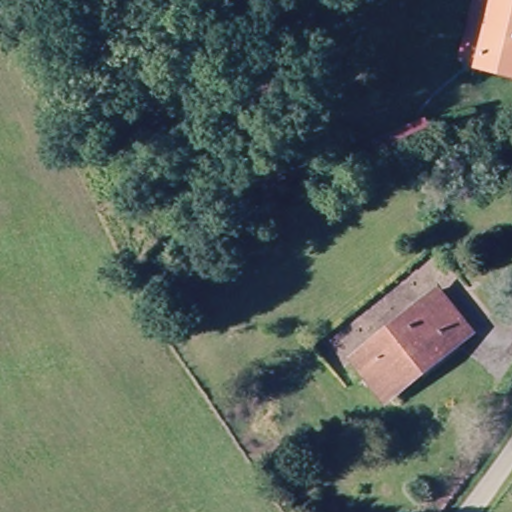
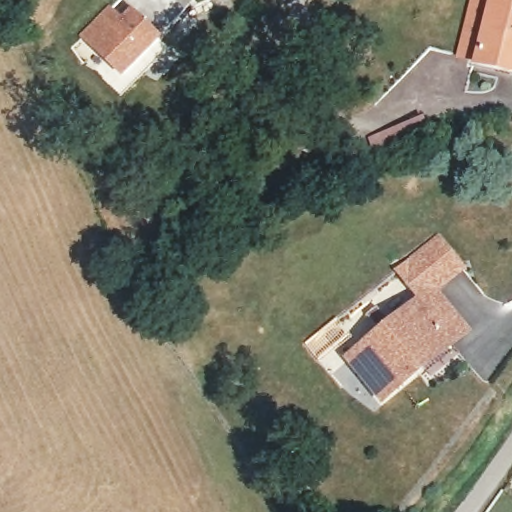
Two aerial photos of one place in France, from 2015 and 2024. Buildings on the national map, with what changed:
unchanged [(506,0),(490,56),(473,51),(486,0),(506,0)]
unchanged [(506,0),(512,0),(512,62),(490,56),(506,0)]
new [(108,5),(122,16),(131,8),(162,37),(123,78),(79,36),(108,5)]
demolished [(152,43),(121,72),(97,46),(128,18),(152,43)]
unchanged [(427,140),(399,149),(394,135),(422,125),(427,140)]
new [(438,233),(468,269),(438,296),(434,291),(421,302),(394,270),(438,233)]
unchanged [(421,302),(434,291),(438,296),(465,329),(379,398),(348,362),(421,302)]

